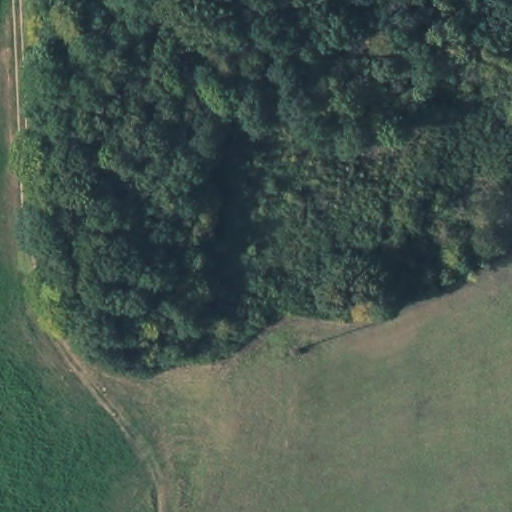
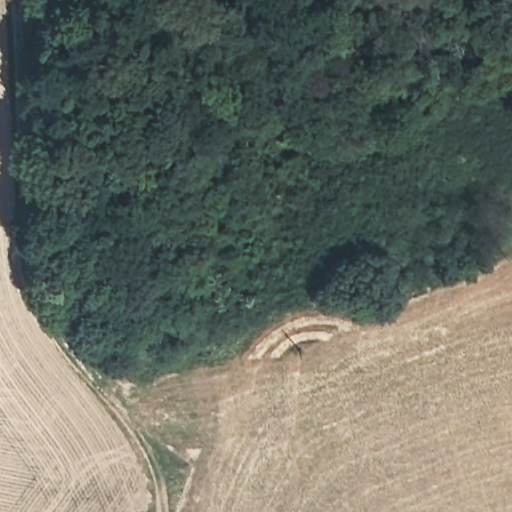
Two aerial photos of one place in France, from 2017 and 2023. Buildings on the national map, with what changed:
[]

